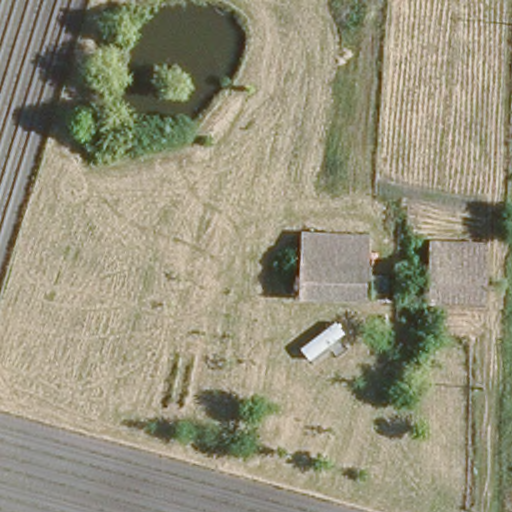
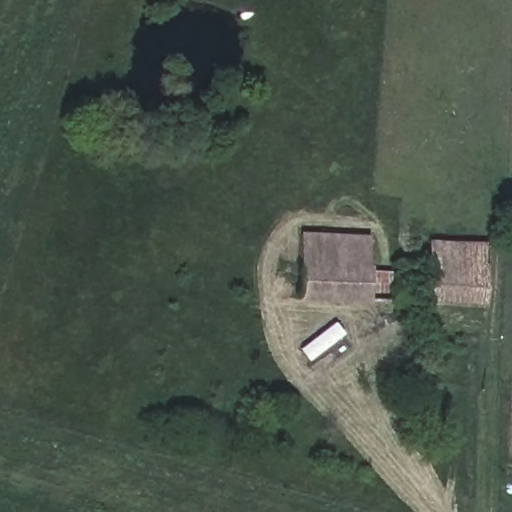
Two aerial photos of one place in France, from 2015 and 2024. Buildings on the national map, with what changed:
unchanged [(370,297),(299,296),(303,232),(370,235),(370,297)]
unchanged [(487,246),(484,306),(429,303),(432,244),(487,246)]

